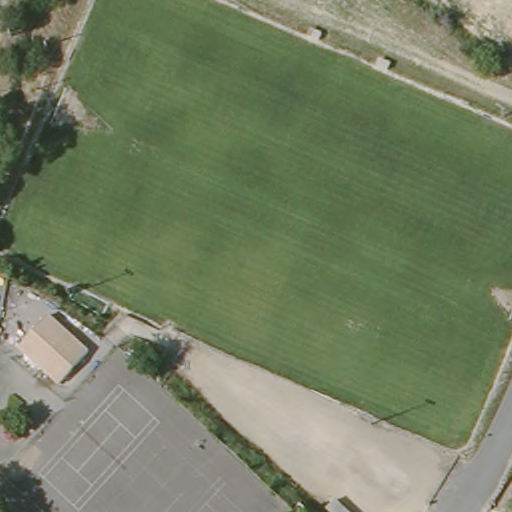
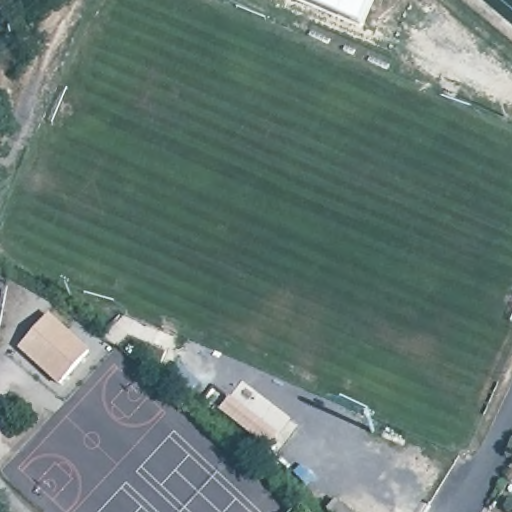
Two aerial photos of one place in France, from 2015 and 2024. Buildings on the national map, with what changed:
new [(301,0),(373,0),(362,27),(301,0)]
unchanged [(61,382),(20,345),(48,314),(89,351),(61,382)]
unchanged [(229,392),(277,436),(260,454),(212,411),(229,392)]

